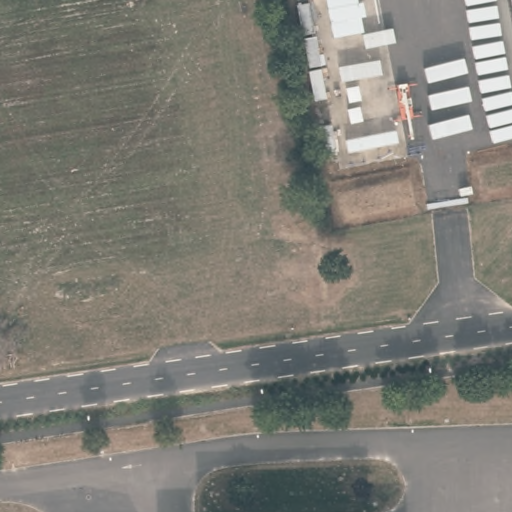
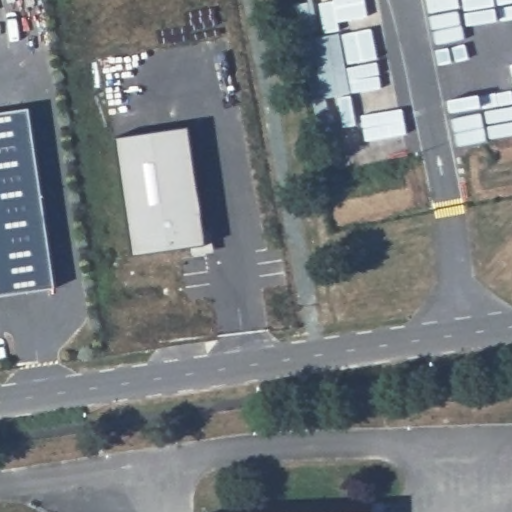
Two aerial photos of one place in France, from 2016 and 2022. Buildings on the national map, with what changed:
new [(30,109),(56,288),(0,296),(0,113),(30,109)]
new [(188,128),(206,245),(133,256),(115,139),(188,128)]

